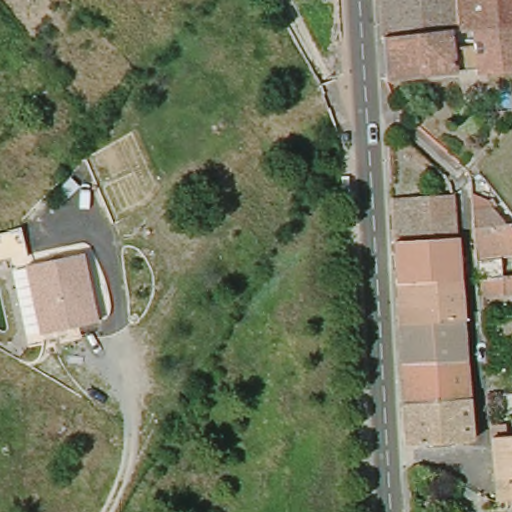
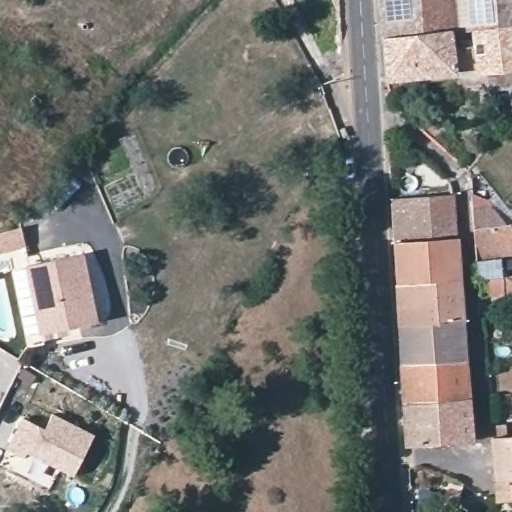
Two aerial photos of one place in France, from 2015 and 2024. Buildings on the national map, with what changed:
unchanged [(512,0),(512,31),(385,35),(383,0),(512,0)]
unchanged [(465,74),(387,77),(385,35),(512,31),(512,76),(465,77),(465,74)]
unchanged [(460,239),(395,242),(394,199),(398,198),(397,186),(412,185),(412,197),(455,194),(460,239)]
unchanged [(512,259),(477,262),(475,243),(473,206),(496,204),(512,225),(512,259)]
unchanged [(395,242),(460,239),(464,280),(397,283),(395,242)]
unchanged [(82,258),(93,321),(37,331),(25,267),(82,258)]
unchanged [(477,273),(512,271),(512,291),(479,292),(477,273)]
unchanged [(397,283),(464,280),(466,304),(467,322),(400,323),(397,283)]
unchanged [(400,323),(467,322),(471,360),(402,362),(400,323)]
unchanged [(402,362),(471,360),(475,399),(428,401),(405,401),(402,362)]
unchanged [(479,441),(407,444),(405,401),(428,401),(475,399),(479,441)]
new [(44,428),(52,413),(94,435),(72,477),(27,452),(24,458),(6,447),(22,417),(44,428)]
unchanged [(490,439),(512,437),(512,501),(495,502),(494,482),(490,439)]

